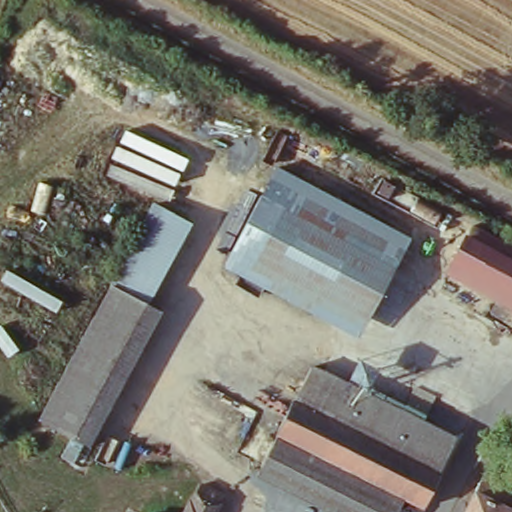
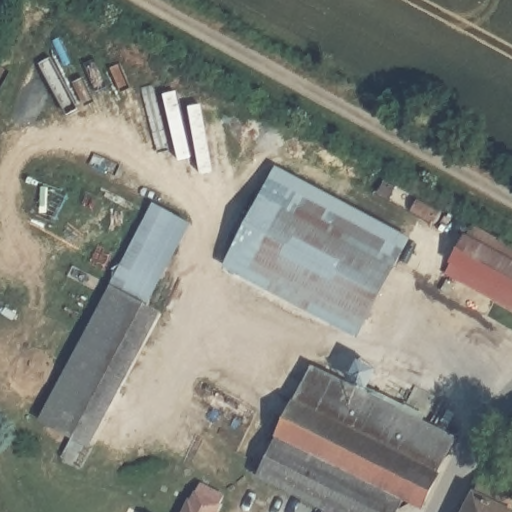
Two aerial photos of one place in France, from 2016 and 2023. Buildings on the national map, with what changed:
unchanged [(360,336),(224,263),(277,162),(411,233),(360,336)]
unchanged [(192,226),(149,303),(165,312),(92,449),(38,419),(152,204),(192,226)]
unchanged [(512,244),(512,311),(501,304),(482,293),(442,270),(452,249),(468,219),(512,244)]
unchanged [(424,505),(411,497),(403,512),(342,512),(261,468),(311,367),(460,435),(424,505)]
unchanged [(254,453),(250,461),(242,458),(246,450),(254,453)]
unchanged [(190,499),(199,481),(222,493),(214,512),(175,512),(183,496),(190,499)]
unchanged [(512,498),(512,512),(470,512),(485,484),(512,498)]

